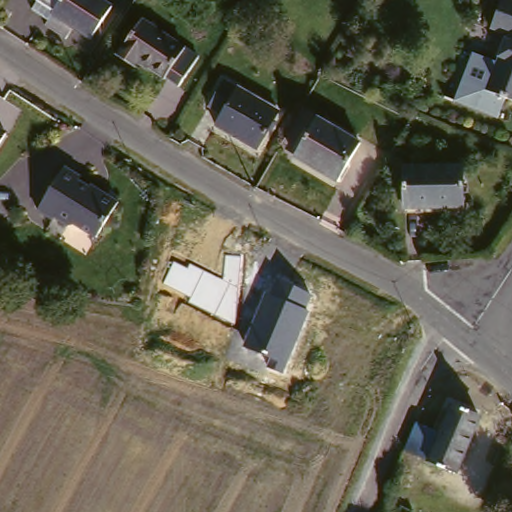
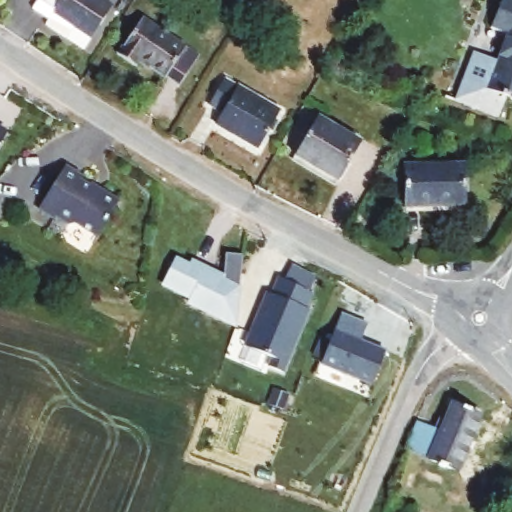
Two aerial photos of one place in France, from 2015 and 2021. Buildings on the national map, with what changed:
unchanged [(81,24),(75,34),(50,19),(58,7),(48,0),(101,0),(112,8),(94,34),(81,24)]
unchanged [(497,31),(506,9),(510,0),(512,0),(512,37),(497,31)]
unchanged [(195,56),(175,83),(140,61),(133,67),(114,54),(139,16),(195,56)]
unchanged [(489,93),(500,64),(503,65),(512,43),(512,102),(489,93)]
unchanged [(489,93),(504,99),(498,119),(454,99),(473,53),(500,64),(489,93)]
unchanged [(259,154),(213,128),(220,118),(210,109),(226,82),(282,117),(259,154)]
unchanged [(333,187),(292,158),(316,119),(358,148),(333,187)]
unchanged [(0,159),(0,129),(13,138),(0,159)]
unchanged [(85,176),(83,179),(105,193),(106,190),(123,200),(101,237),(80,224),(73,225),(60,218),(58,219),(43,210),(69,166),(85,176)]
unchanged [(461,216),(401,214),(402,169),(463,174),(461,216)]
unchanged [(0,196),(6,202),(0,208),(0,196)]
unchanged [(170,272),(166,271),(169,265),(172,267),(173,265),(188,270),(190,264),(230,279),(233,252),(250,254),(244,323),(193,305),(194,300),(164,290),(170,272)]
unchanged [(266,368),(271,357),(245,345),(267,291),(270,292),(271,292),(278,278),(312,294),(305,309),(310,313),(283,375),(266,368)]
new [(320,364),(342,314),(368,324),(360,341),(386,351),(371,386),(320,364)]
unchanged [(461,472),(404,452),(414,422),(440,432),(449,404),(480,414),(461,472)]

